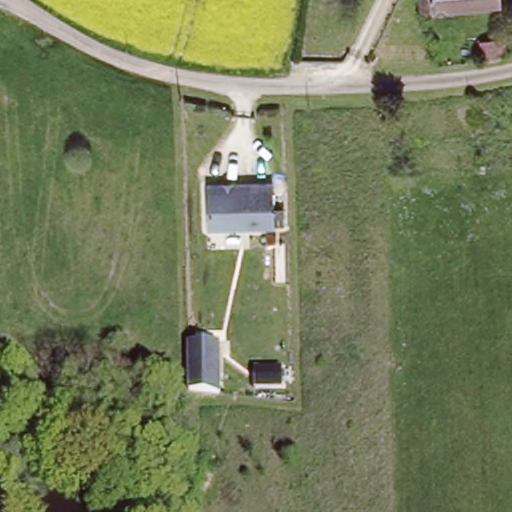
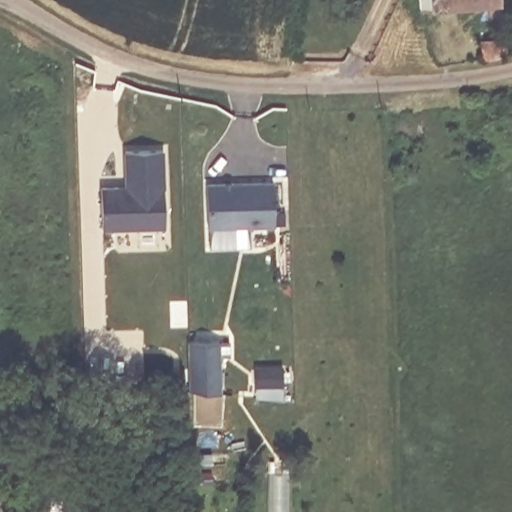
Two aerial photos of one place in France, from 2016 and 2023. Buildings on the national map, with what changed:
unchanged [(412,0),(506,0),(506,4),(430,7),(430,3),(412,4),(412,0)]
new [(101,186),(124,186),(123,151),(162,149),(165,227),(102,229),(101,186)]
unchanged [(277,224),(210,226),(208,184),(275,181),(277,224)]
unchanged [(218,338),(219,394),(187,394),(185,338),(218,338)]
unchanged [(256,363),(284,363),(282,380),(256,378),(256,363)]

